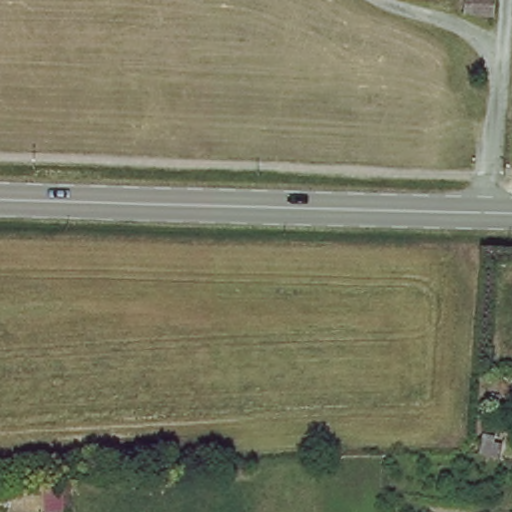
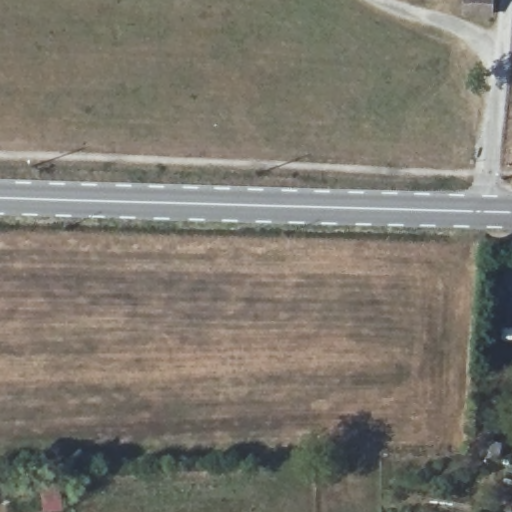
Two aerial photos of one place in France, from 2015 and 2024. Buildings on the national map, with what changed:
unchanged [(437,5),(397,2),(397,0),(437,0),(437,5)]
unchanged [(471,0),(492,0),(492,14),(471,13),(471,0)]

